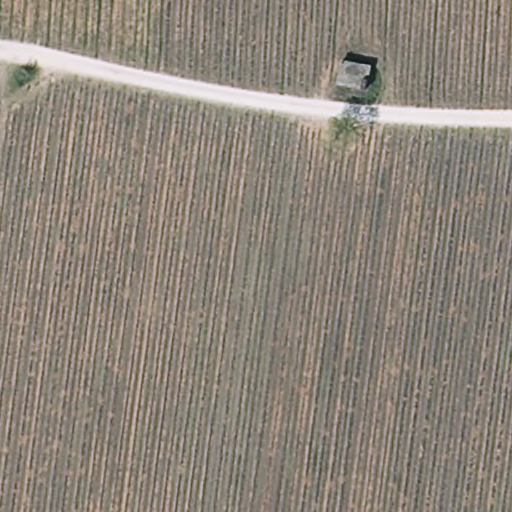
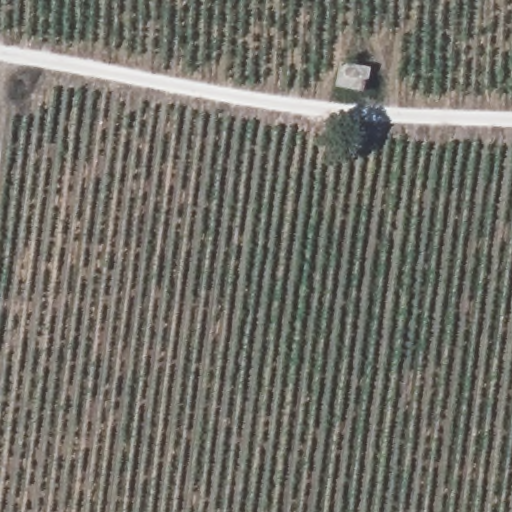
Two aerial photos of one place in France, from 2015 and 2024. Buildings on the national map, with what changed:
unchanged [(373,68),(369,92),(339,87),(343,62),(373,68)]

